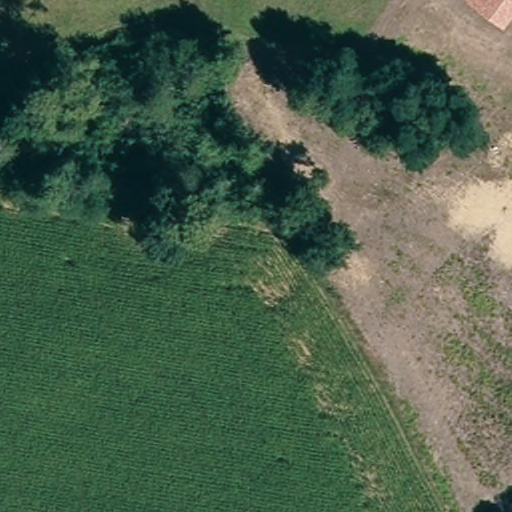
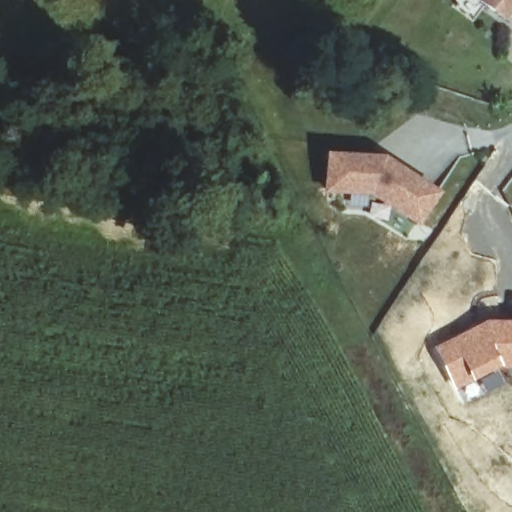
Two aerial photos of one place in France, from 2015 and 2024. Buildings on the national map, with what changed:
unchanged [(506,0),(492,16),(473,0),(506,0)]
new [(383,154),(441,194),(420,225),(367,194),(324,191),(326,154),(383,154)]
new [(497,365),(457,385),(439,350),(486,325),(512,326),(512,366),(497,365)]

